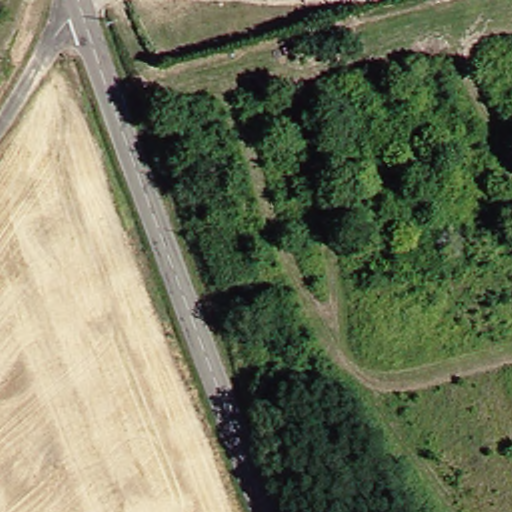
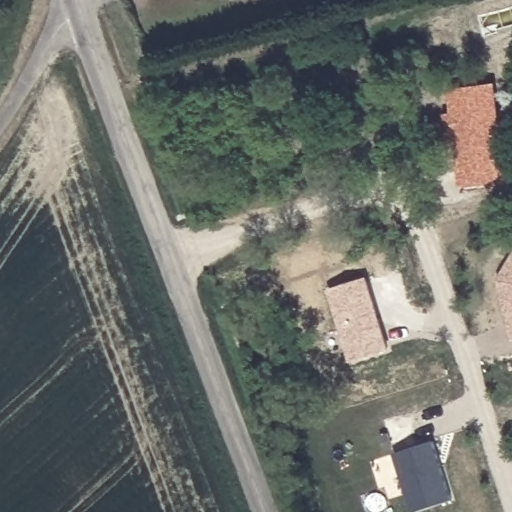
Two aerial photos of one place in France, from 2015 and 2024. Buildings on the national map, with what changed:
new [(456,136),(448,136),(445,115),(453,113),(449,90),(498,83),(510,183),(464,188),(456,136)]
new [(512,260),(512,326),(499,280),(512,260)]
new [(328,290),(368,277),(391,350),(351,363),(328,290)]
new [(395,453),(435,441),(456,499),(416,512),(395,453)]

